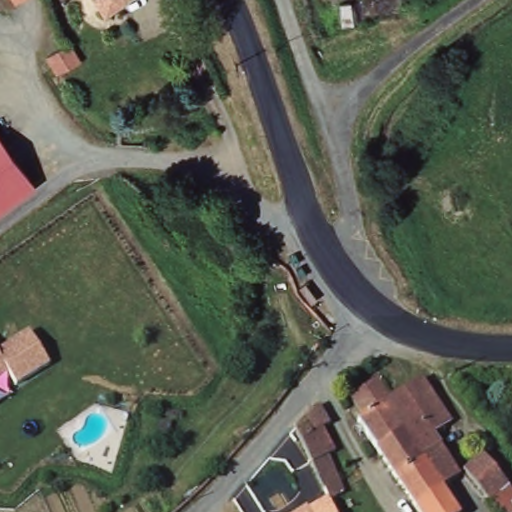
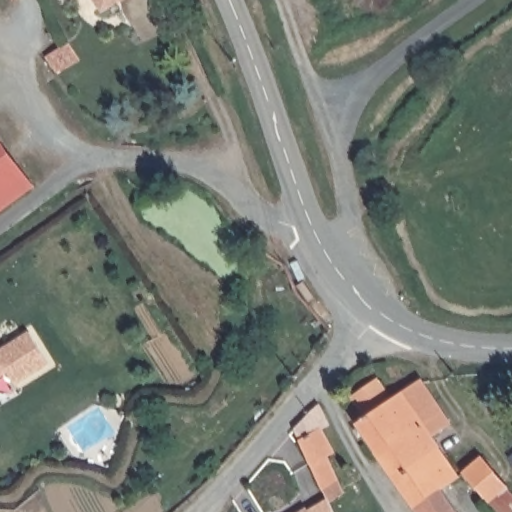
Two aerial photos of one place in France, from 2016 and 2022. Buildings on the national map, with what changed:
unchanged [(110,14),(100,0),(127,0),(110,14)]
unchanged [(78,63),(59,74),(53,79),(46,69),(42,63),(49,59),(66,47),(78,63)]
unchanged [(0,225),(0,138),(44,194),(0,225)]
unchanged [(51,365),(17,385),(9,372),(0,377),(0,349),(31,331),(51,365)]
unchanged [(359,410),(379,397),(388,408),(426,382),(456,426),(440,437),(448,450),(427,464),(409,439),(383,455),(364,425),(368,422),(359,410)]
unchanged [(330,498),(324,485),(299,429),(324,405),(335,420),(327,426),(342,448),(334,453),(343,476),(349,491),(330,498)]
unchanged [(409,439),(427,464),(448,450),(464,472),(443,488),(460,512),(422,512),(383,455),(409,439)]
unchanged [(490,457),(511,495),(489,507),(468,470),(490,457)]
unchanged [(293,512),(304,505),(308,512),(293,512)]

